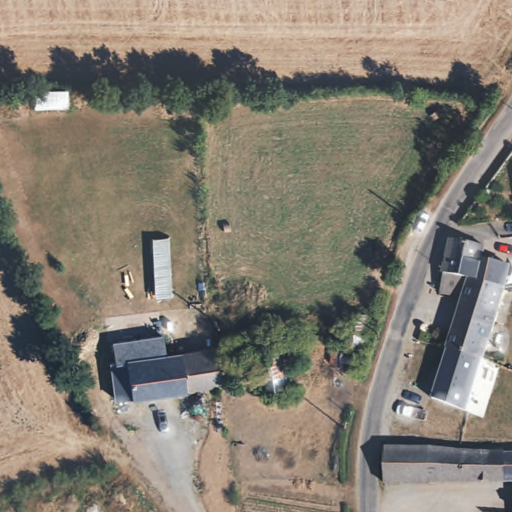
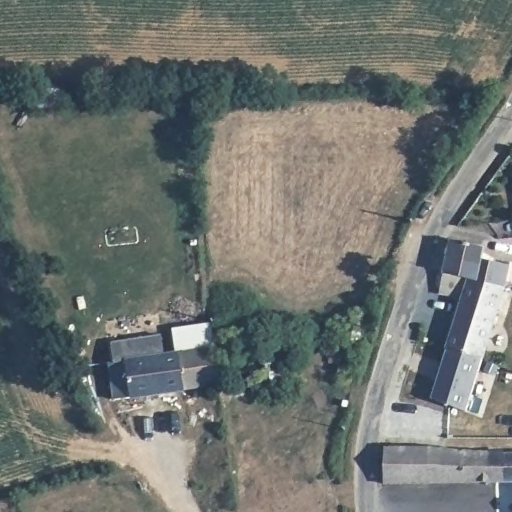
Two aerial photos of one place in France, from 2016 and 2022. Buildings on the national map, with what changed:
unchanged [(68,105),(35,105),(34,90),(68,90),(68,105)]
unchanged [(484,244),(480,262),(502,268),(499,286),(445,274),(453,237),(484,244)]
unchanged [(461,297),(441,291),(445,274),(499,286),(506,287),(484,357),(446,347),(461,297)]
unchanged [(340,365),(346,325),(347,317),(348,308),(366,310),(365,315),(363,326),(357,366),(340,365)]
unchanged [(290,383),(273,385),(266,335),(281,332),(290,383)]
unchanged [(116,398),(114,375),(126,374),(126,362),(114,362),(111,340),(163,335),(166,355),(216,347),(216,351),(220,385),(116,398)]
unchanged [(484,357),(468,408),(432,396),(446,347),(484,357)]
unchanged [(511,451),(512,451),(512,482),(383,482),(385,445),(511,451)]

